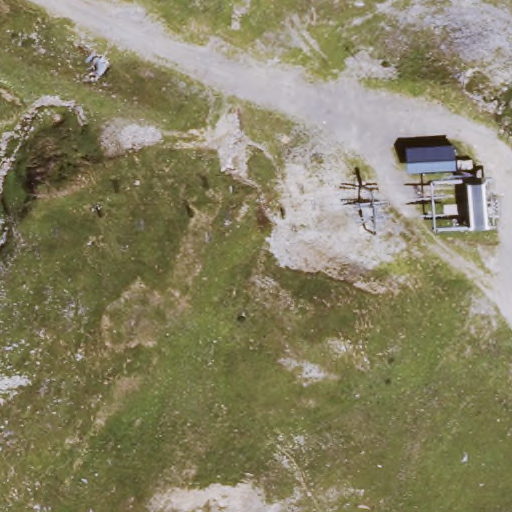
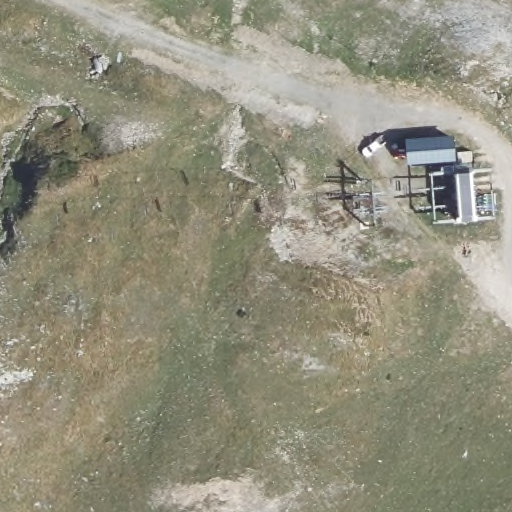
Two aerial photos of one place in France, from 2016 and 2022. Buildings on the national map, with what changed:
unchanged [(409,142),(452,136),(456,159),(411,161),(409,142)]

